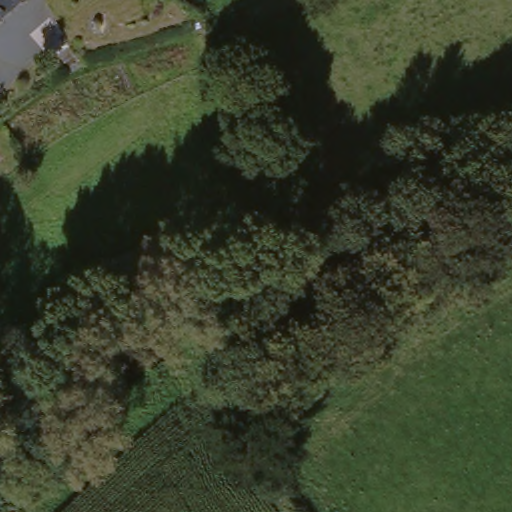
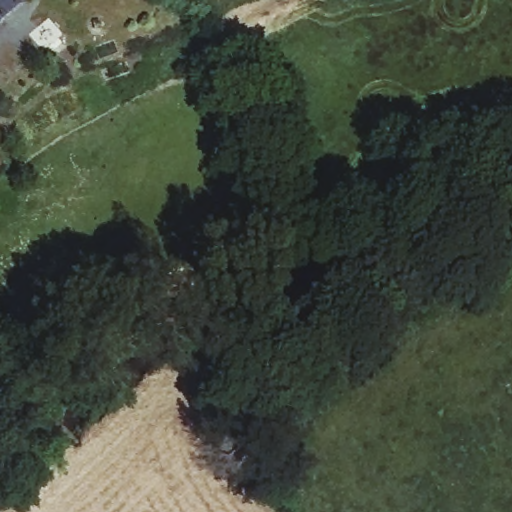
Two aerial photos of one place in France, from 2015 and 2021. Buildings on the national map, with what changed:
unchanged [(18,0),(0,16),(0,0),(18,0)]

